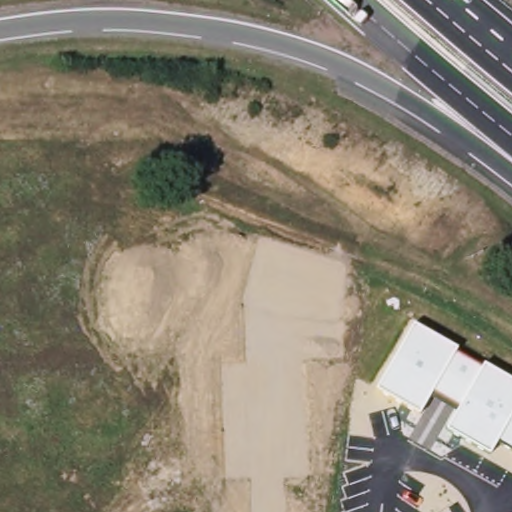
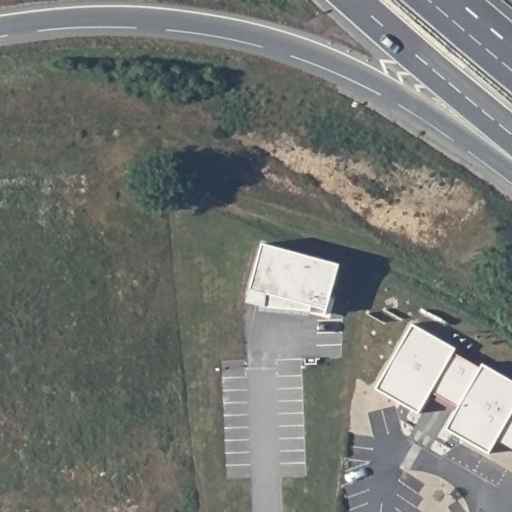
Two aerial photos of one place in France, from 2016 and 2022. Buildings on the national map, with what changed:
new [(330,318),(297,310),(265,306),(265,301),(249,296),(263,244),(340,265),(331,297),(336,299),(330,318)]
unchanged [(413,324),(457,348),(455,354),(481,369),(483,365),(512,381),(512,448),(497,440),(489,453),(446,428),(457,409),(431,394),(420,412),(377,388),(413,324)]

